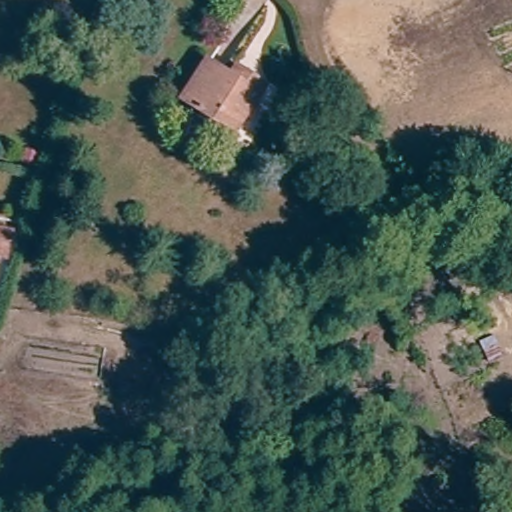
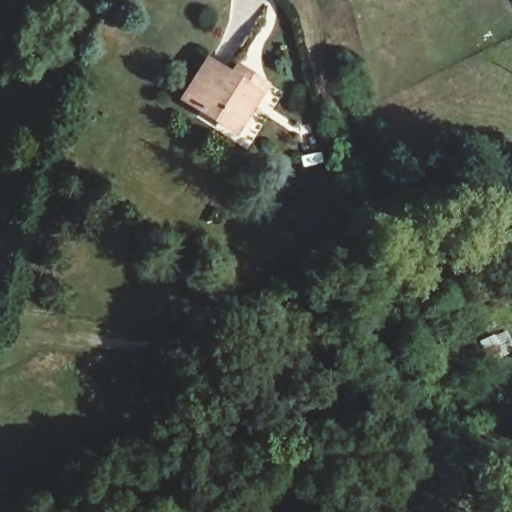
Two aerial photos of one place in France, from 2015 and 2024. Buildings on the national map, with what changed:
unchanged [(230,75),(233,66),(242,69),(244,69),(262,75),(244,130),(188,111),(194,95),(202,70),(226,78),(229,79),(230,75)]
unchanged [(17,232),(11,257),(0,254),(0,228),(17,232)]

